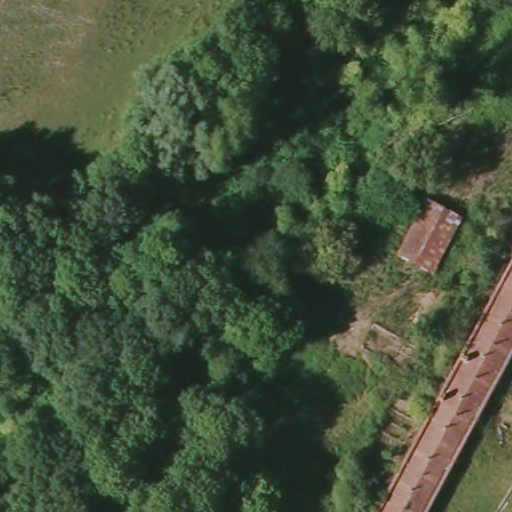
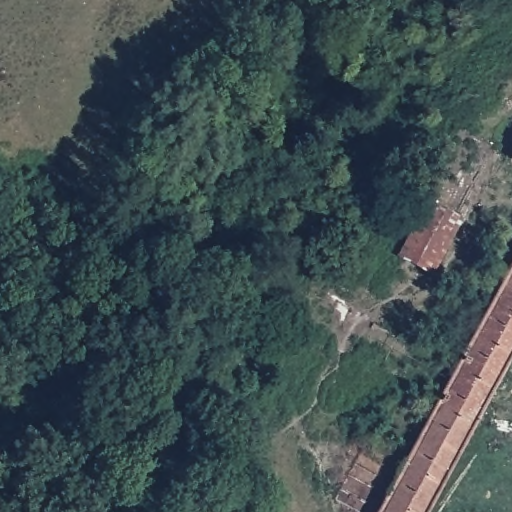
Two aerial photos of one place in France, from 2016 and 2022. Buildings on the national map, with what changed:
unchanged [(456,219),(428,276),(390,257),(419,202),(444,214),(456,219)]
unchanged [(468,429),(423,512),(372,512),(392,478),(443,381),(434,375),(444,357),(454,361),(512,253),(512,345),(468,429)]

